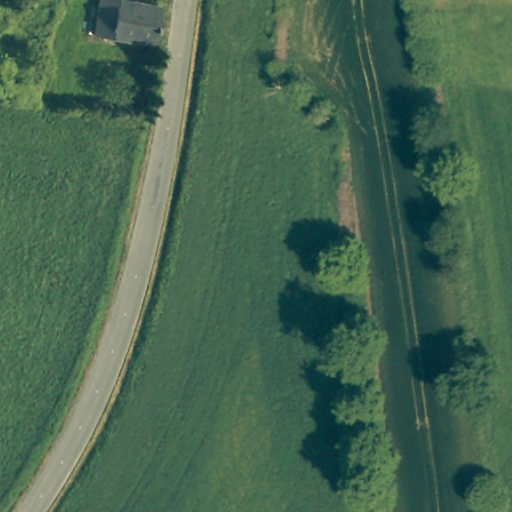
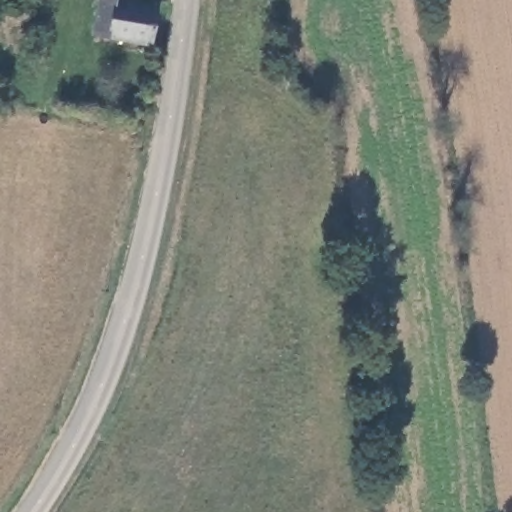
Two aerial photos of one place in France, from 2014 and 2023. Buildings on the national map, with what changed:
unchanged [(97,0),(114,0),(114,1),(155,2),(154,26),(145,25),(143,32),(131,31),(131,23),(119,22),(119,7),(96,5),(97,0)]
unchanged [(95,37),(96,5),(119,7),(119,22),(131,23),(131,31),(143,32),(145,25),(154,26),(155,2),(160,2),(155,44),(95,37)]

